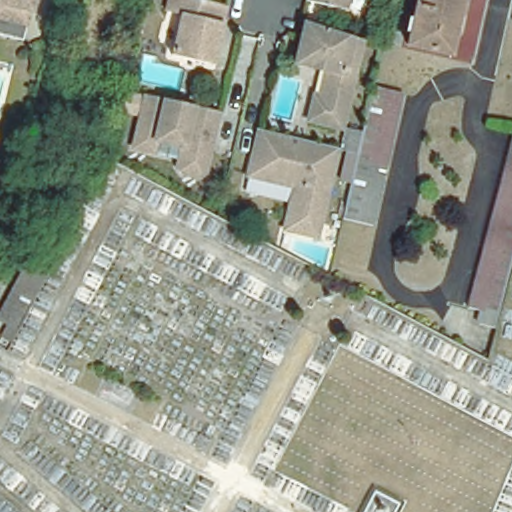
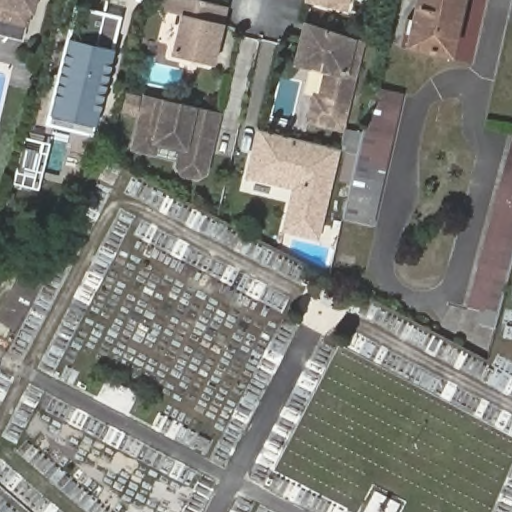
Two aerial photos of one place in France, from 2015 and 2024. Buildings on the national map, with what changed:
unchanged [(0,31),(0,0),(33,0),(31,11),(26,10),(22,24),(20,36),(0,31)]
unchanged [(212,55),(171,45),(181,5),(165,1),(165,0),(225,0),(221,21),(217,35),(212,55)]
unchanged [(343,10),(305,1),(305,0),(346,0),(343,10)]
new [(49,115),(69,39),(66,38),(74,5),(122,15),(114,49),(95,126),(49,115)]
unchanged [(307,66),(290,63),(300,20),(352,37),(362,40),(342,129),(309,121),(315,97),(321,70),(307,66)]
unchanged [(357,153),(341,149),(345,129),(361,132),(372,85),(402,92),(372,226),(342,219),(355,160),(357,153)]
unchanged [(214,112),(199,174),(192,177),(177,174),(172,166),(177,146),(150,140),(147,152),(129,147),(141,95),(214,112)]
unchanged [(247,175),(253,151),(258,130),(266,131),(336,148),(315,236),(283,229),(290,202),(293,186),(247,175)]
unchanged [(477,324),(481,311),(467,307),(512,139),(512,260),(493,328),(477,324)]
unchanged [(12,334),(0,328),(0,290),(24,243),(52,256),(12,334)]
unchanged [(395,512),(369,512),(377,490),(400,500),(395,512)]

